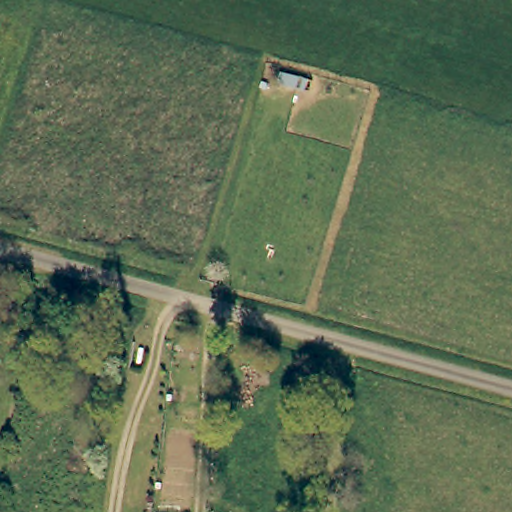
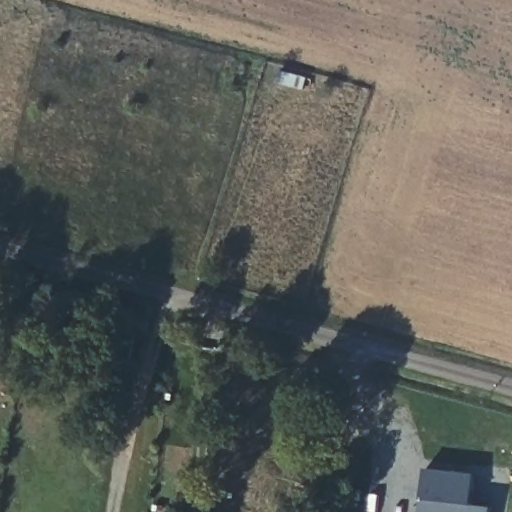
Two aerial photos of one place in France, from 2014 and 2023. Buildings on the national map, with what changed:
new [(472,506),(495,508),(494,512),(419,512),(424,469),(476,475),(472,506)]

